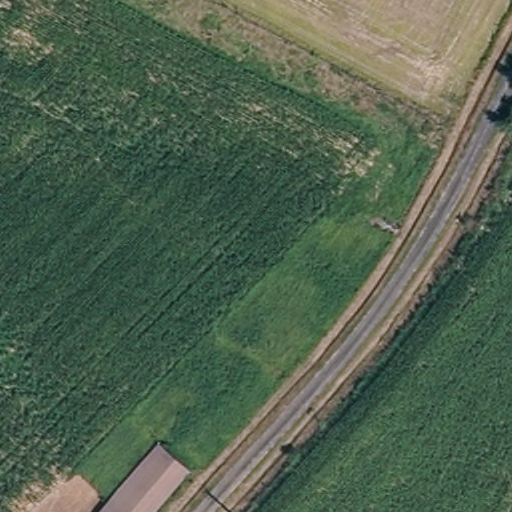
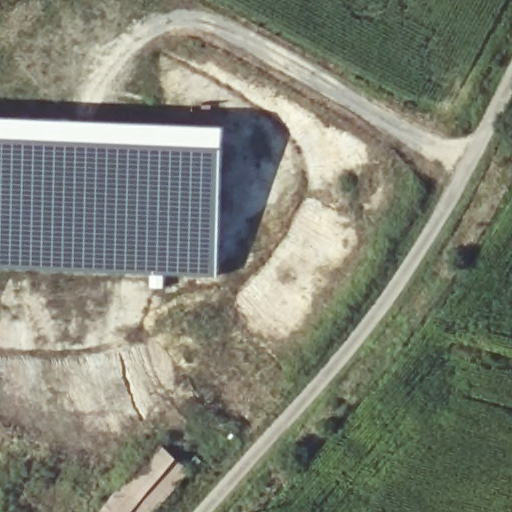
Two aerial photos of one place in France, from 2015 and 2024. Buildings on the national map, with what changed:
new [(225,125),(216,281),(174,278),(158,278),(149,277),(25,272),(0,270),(0,114),(225,125)]
unchanged [(151,512),(98,512),(156,443),(189,470),(151,512)]

